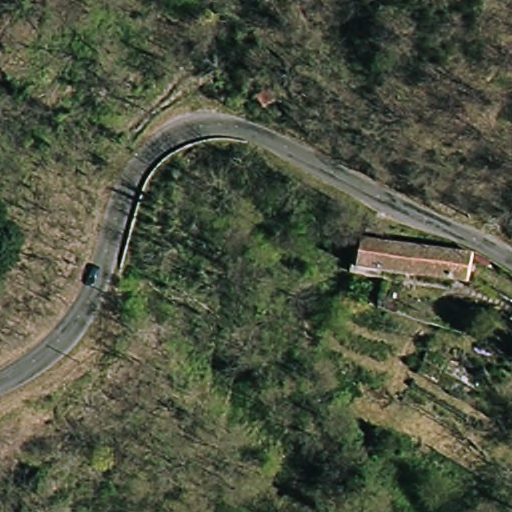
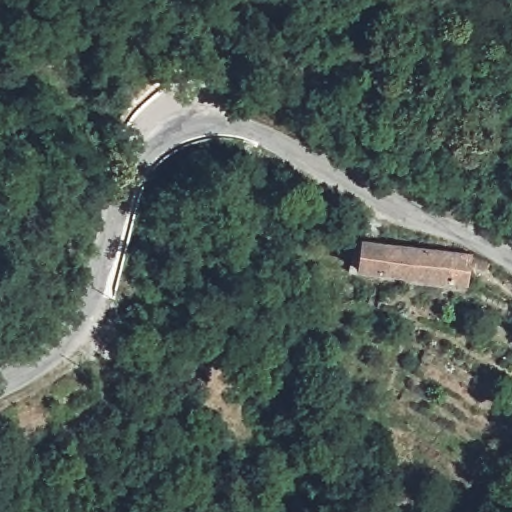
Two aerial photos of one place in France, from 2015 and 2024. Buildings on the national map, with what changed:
unchanged [(353,261),(356,234),(473,256),(471,284),(451,281),(426,276),(353,261)]

